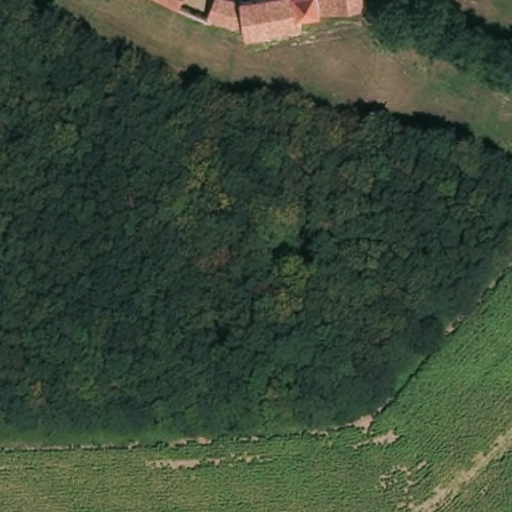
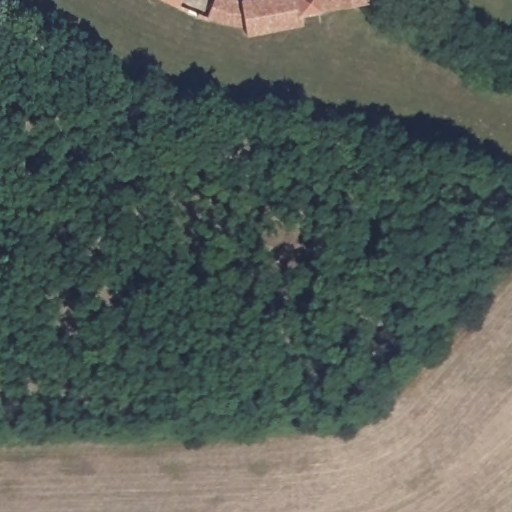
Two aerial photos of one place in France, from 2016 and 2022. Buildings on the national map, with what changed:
unchanged [(338,3),(311,9),(312,16),(265,28),(263,28),(261,21),(230,16),(227,16),(210,9),(214,0),(353,0),(338,3)]

